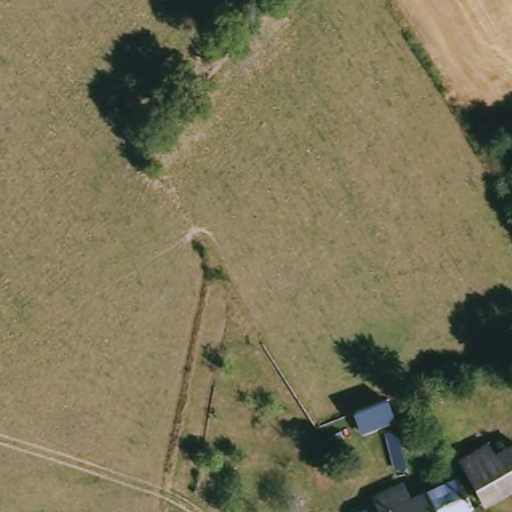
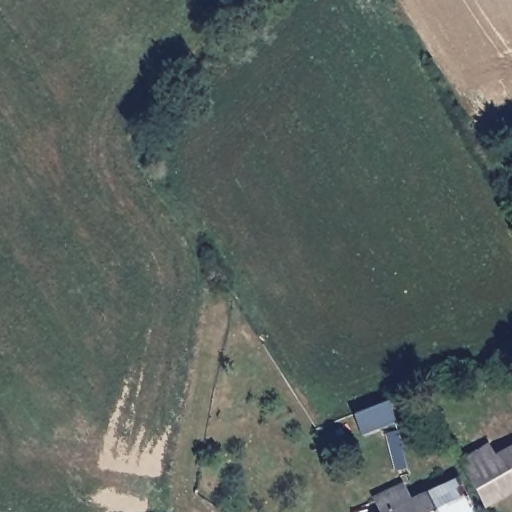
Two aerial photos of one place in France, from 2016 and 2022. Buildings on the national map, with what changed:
unchanged [(490,455),(494,460),(510,452),(512,455),(512,494),(482,509),(464,468),(490,455)]
unchanged [(473,512),(439,512),(432,495),(459,483),(473,512)]
unchanged [(439,512),(386,512),(381,500),(408,487),(416,503),(420,501),(432,495),(439,512)]

